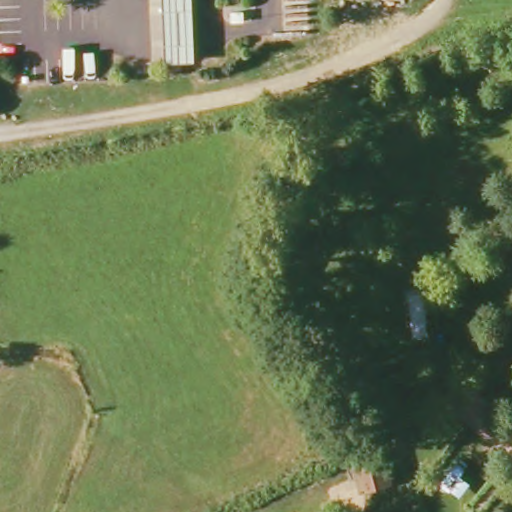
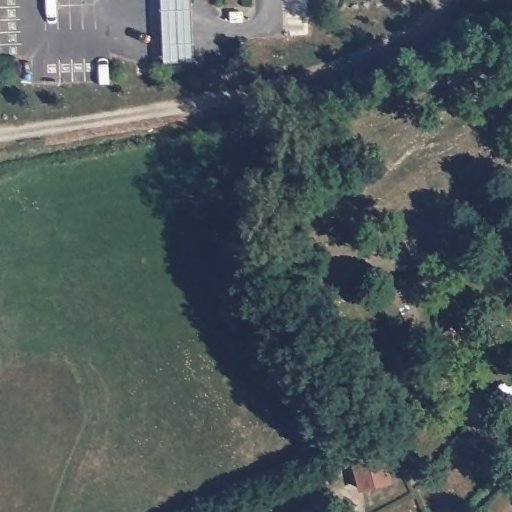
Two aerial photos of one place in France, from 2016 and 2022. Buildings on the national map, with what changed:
unchanged [(194,64),(161,64),(159,0),(190,0),(194,64)]
unchanged [(361,497),(348,463),(380,452),(394,486),(361,497)]

